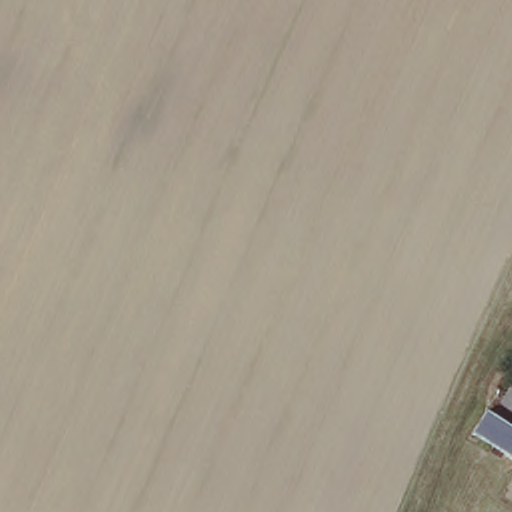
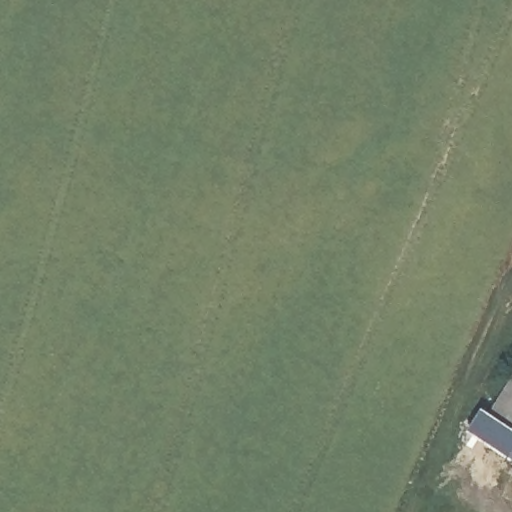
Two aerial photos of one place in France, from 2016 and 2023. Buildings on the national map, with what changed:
unchanged [(512,424),(502,418),(512,402),(512,424)]
unchanged [(512,459),(491,446),(478,440),(494,412),(502,418),(512,424),(512,459)]

